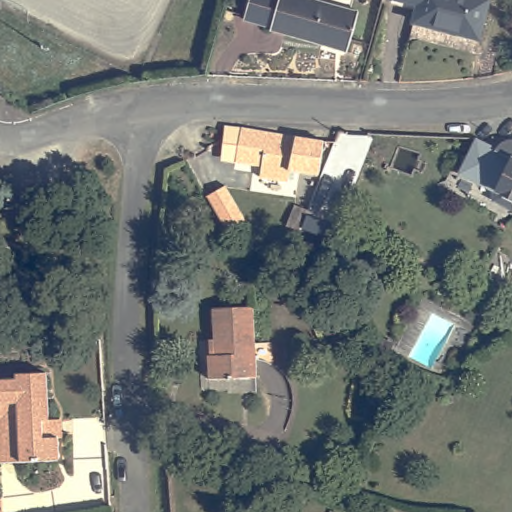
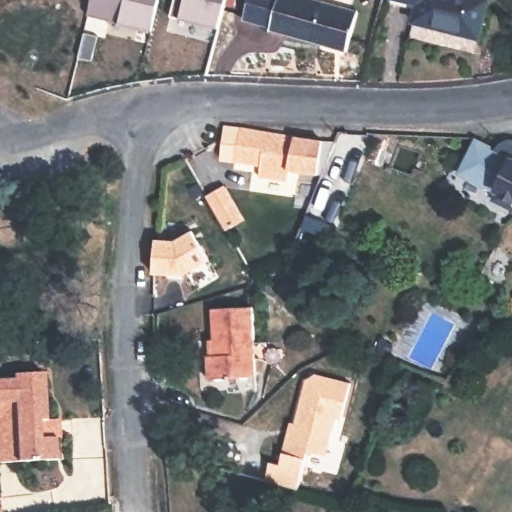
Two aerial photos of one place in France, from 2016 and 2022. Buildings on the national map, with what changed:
new [(92,0),(159,0),(151,31),(88,16),(92,0)]
new [(227,0),(219,28),(170,17),(175,0),(227,0)]
unchanged [(243,19),(249,0),(313,0),(355,12),(345,50),(270,29),(271,27),(243,19)]
unchanged [(483,39),(417,22),(422,6),(401,0),(488,0),(493,1),(483,39)]
unchanged [(494,0),(493,1),(488,0),(494,0)]
unchanged [(316,177),(287,171),(285,183),(257,178),(259,166),(235,163),(236,156),(221,154),(225,126),(241,129),(241,128),(323,141),(320,158),(327,159),(324,169),(318,167),(316,177)]
unchanged [(466,174),(483,143),(503,153),(506,148),(510,146),(512,145),(512,197),(503,192),(466,174)]
unchanged [(226,184),(250,226),(229,238),(206,196),(226,184)]
new [(184,276),(153,274),(155,239),(177,240),(192,230),(209,260),(184,276)]
unchanged [(217,360),(216,314),(256,313),(259,382),(211,384),(210,360),(217,360)]
new [(342,420),(335,419),(327,456),(307,452),(298,488),(264,482),(270,462),(279,464),(290,422),(295,423),(306,379),(315,372),(351,382),(342,420)]
unchanged [(15,380),(15,376),(45,374),(48,421),(40,422),(42,439),(58,439),(59,460),(0,465),(0,382),(15,380)]

